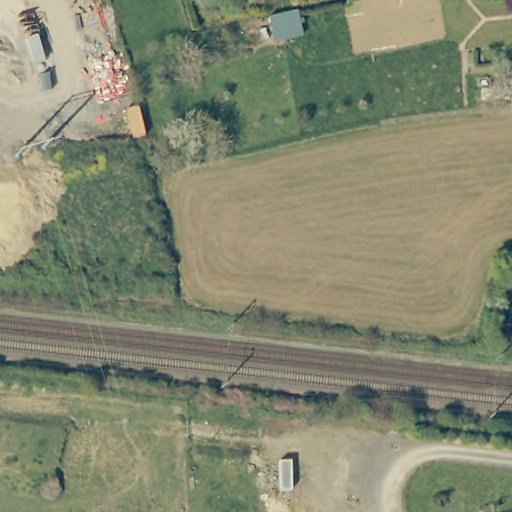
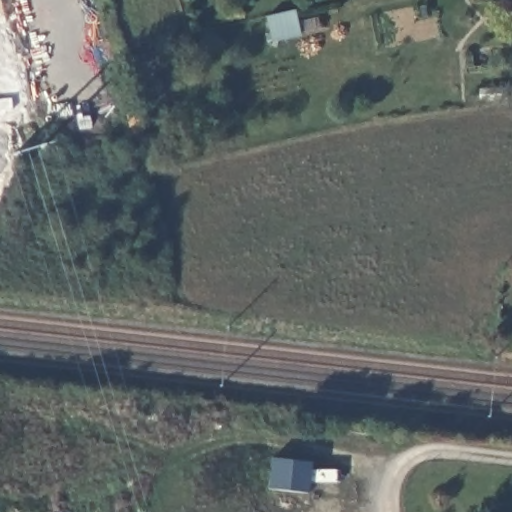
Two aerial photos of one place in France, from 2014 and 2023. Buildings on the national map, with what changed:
unchanged [(295,4),(295,0),(308,0),(309,3),(295,4)]
unchanged [(272,30),(269,17),(297,12),(300,25),(272,30)]
unchanged [(484,104),(480,104),(478,91),(504,89),(506,102),(484,104)]
new [(312,463),(308,494),(269,490),(271,459),(312,463)]

